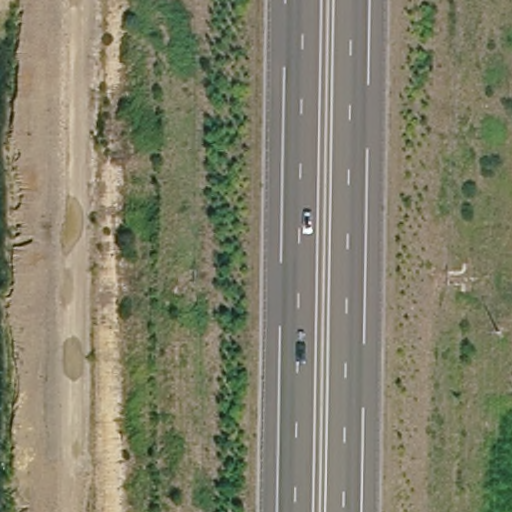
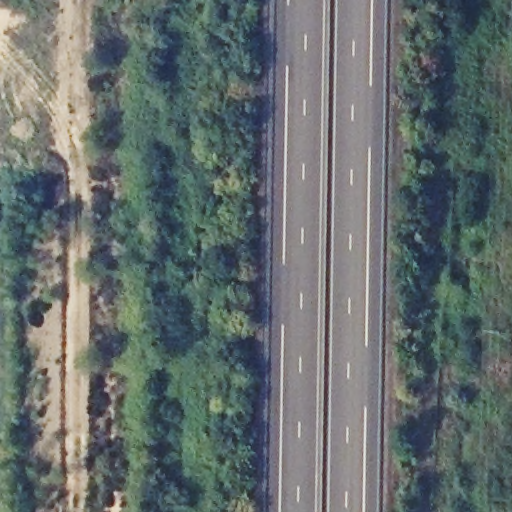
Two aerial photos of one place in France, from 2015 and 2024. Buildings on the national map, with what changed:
[]

